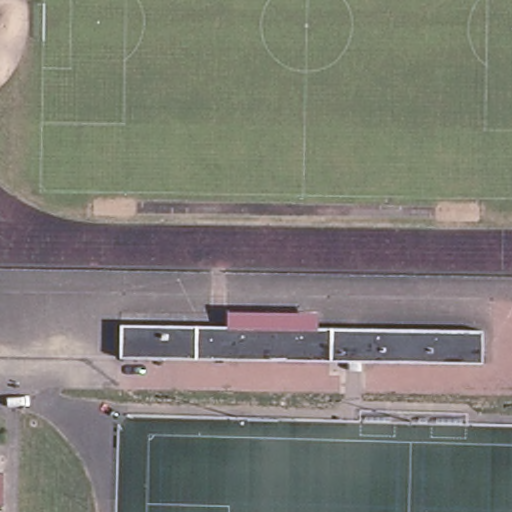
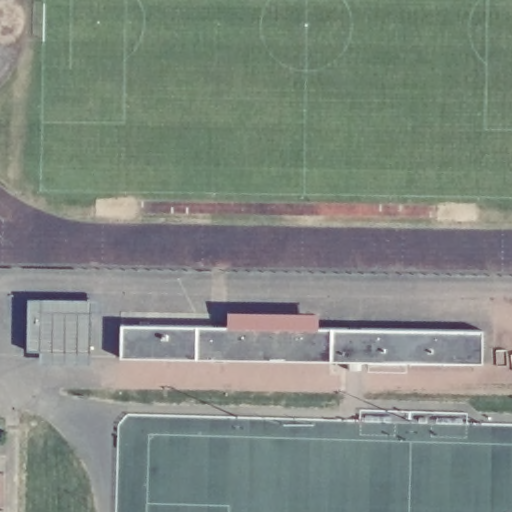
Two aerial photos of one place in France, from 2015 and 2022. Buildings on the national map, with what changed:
new [(27,299),(101,300),(101,312),(91,312),(91,365),(39,364),(39,350),(26,350),(27,299)]
new [(229,314),(321,315),(321,329),(228,327),(229,314)]
unchanged [(480,332),(479,364),(117,358),(118,325),(480,332)]
unchanged [(8,500),(7,512),(0,512),(0,499),(8,500)]

